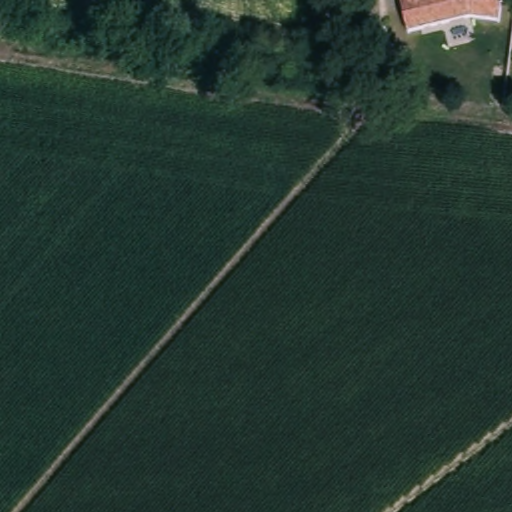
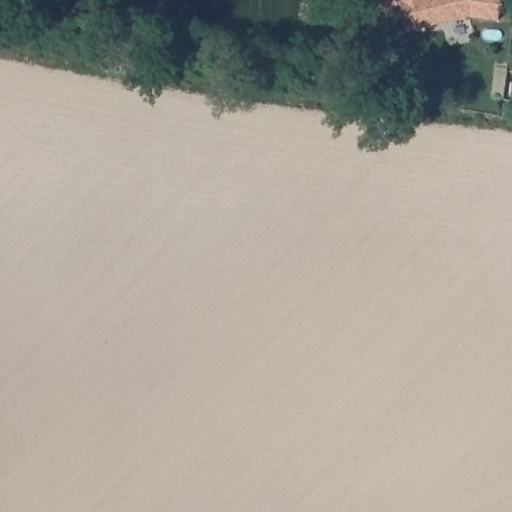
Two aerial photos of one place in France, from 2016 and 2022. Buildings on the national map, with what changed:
unchanged [(500,23),(470,19),(408,31),(401,0),(503,0),(500,23)]

